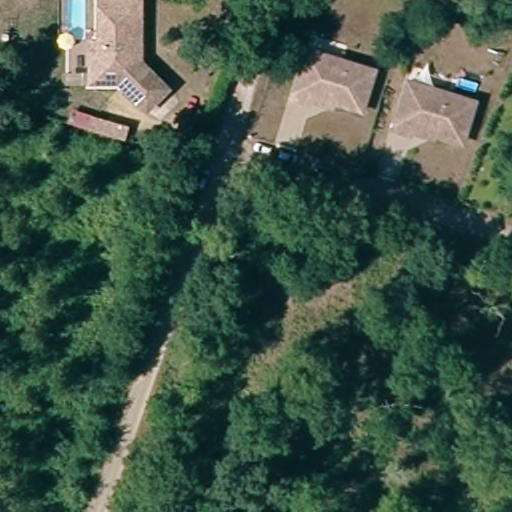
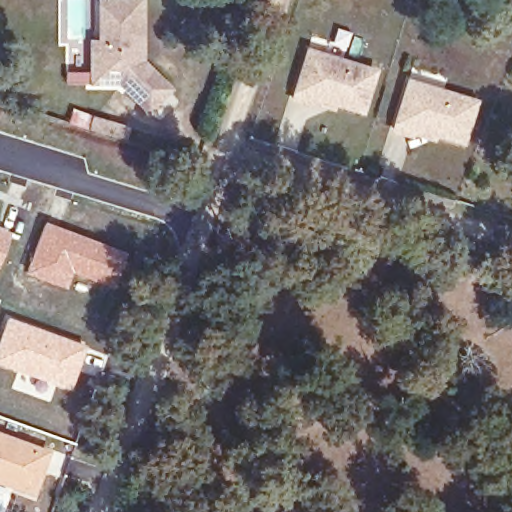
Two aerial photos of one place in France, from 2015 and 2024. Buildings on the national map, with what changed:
unchanged [(120,85),(92,82),(95,41),(104,43),(107,0),(125,0),(149,2),(145,46),(143,65),(169,95),(145,115),(120,85)]
unchanged [(313,51),(380,72),(367,113),(318,97),(315,105),(298,100),(313,51)]
unchanged [(414,83),(481,104),(468,144),(419,129),(416,137),(399,131),(414,83)]
unchanged [(93,116),(127,127),(122,143),(88,131),(93,116)]
new [(45,221),(129,253),(116,289),(73,273),(66,288),(26,272),(45,221)]
new [(9,230),(0,256),(0,227),(9,230)]
new [(7,316),(85,345),(70,390),(0,364),(0,336),(7,316)]
new [(50,450),(32,495),(0,484),(0,431),(50,450)]

